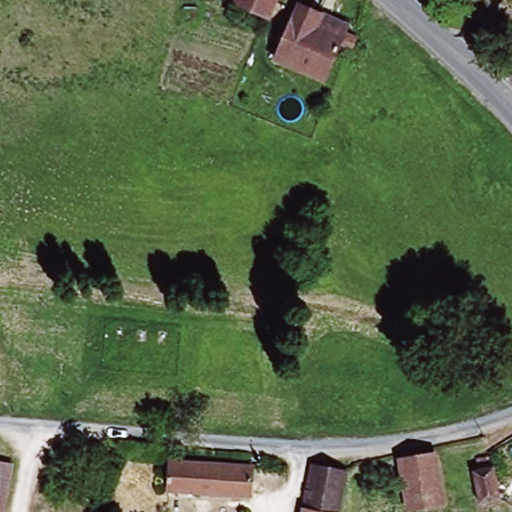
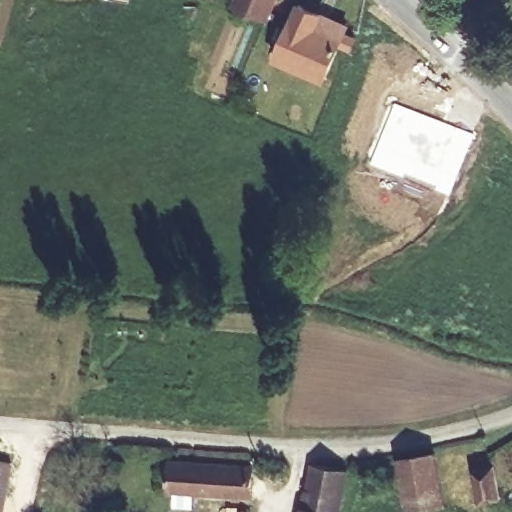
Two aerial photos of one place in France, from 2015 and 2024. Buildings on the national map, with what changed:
unchanged [(232,4),(234,0),(273,0),(266,18),(232,4)]
unchanged [(349,25),(346,33),(357,38),(353,49),(342,44),(326,81),(277,60),(301,5),(349,25)]
new [(394,101),(473,134),(449,193),(369,162),(394,101)]
unchanged [(446,505),(411,511),(402,460),(437,454),(446,505)]
new [(479,469),(477,459),(491,456),(501,498),(481,503),(473,471),(479,469)]
unchanged [(168,457),(250,462),(248,492),(167,487),(168,457)]
unchanged [(5,512),(0,512),(0,461),(14,464),(5,512)]
unchanged [(315,464),(350,472),(341,512),(306,512),(315,464)]

